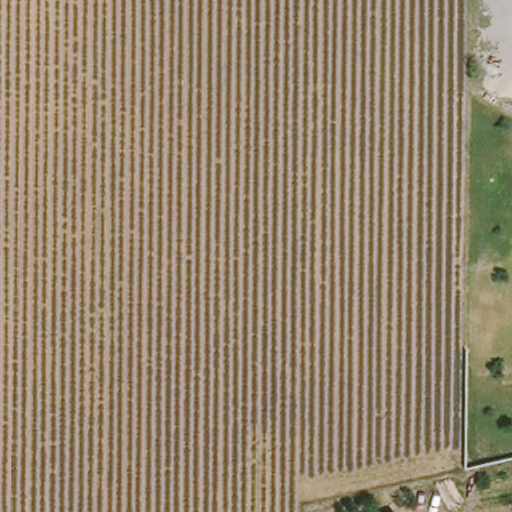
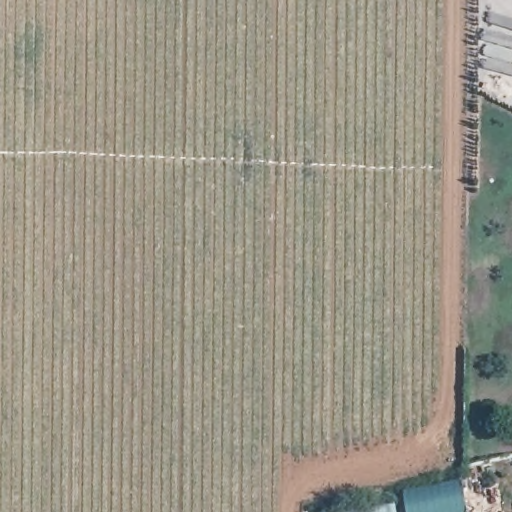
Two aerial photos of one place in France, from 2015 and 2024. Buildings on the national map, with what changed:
new [(404,493),(460,482),(466,512),(408,512),(404,493)]
new [(396,509),(397,512),(379,512),(396,509)]

